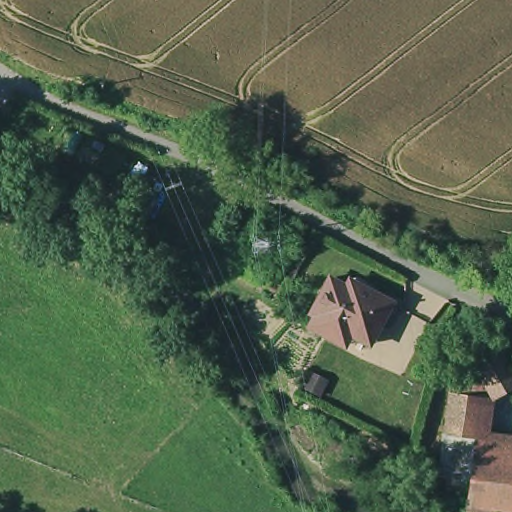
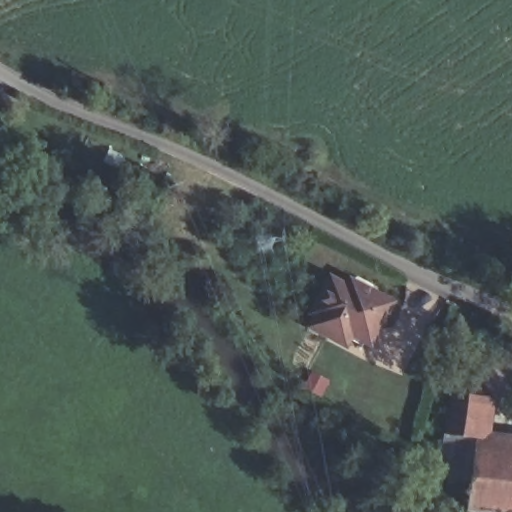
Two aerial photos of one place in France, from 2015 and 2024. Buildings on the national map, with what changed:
unchanged [(325,330),(307,322),(314,310),(309,307),(325,274),(340,282),(345,275),(357,281),(385,296),(365,336),(348,328),(342,338),(325,330)]
unchanged [(485,324),(512,364),(512,387),(499,396),(460,339),(485,324)]
unchanged [(440,433),(444,392),(484,397),(481,430),(480,438),(440,433)]
unchanged [(449,470),(476,473),(480,438),(481,430),(512,434),(512,512),(502,512),(473,509),(452,507),(445,502),(449,470)]

